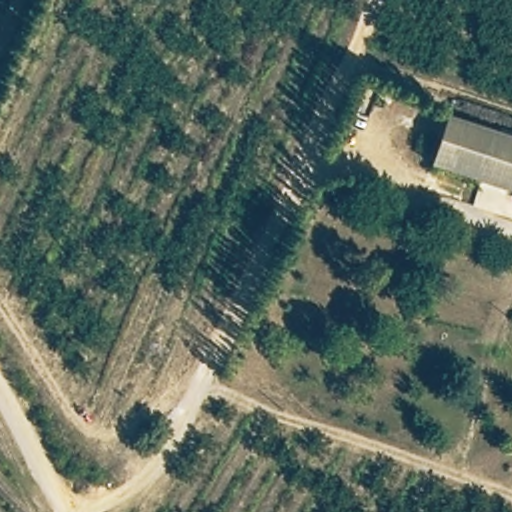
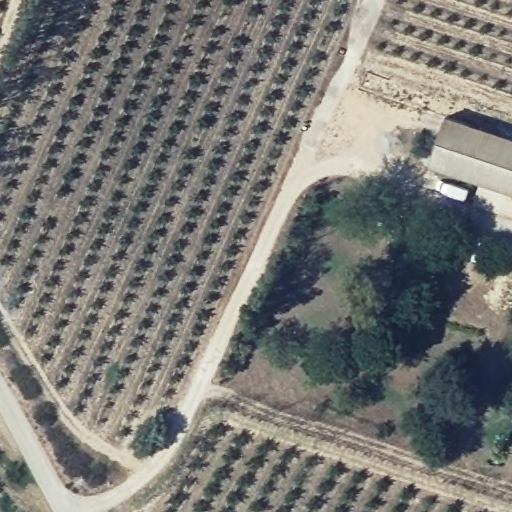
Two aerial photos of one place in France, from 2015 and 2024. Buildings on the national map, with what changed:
unchanged [(512,198),(430,171),(446,121),(512,143),(512,198)]

